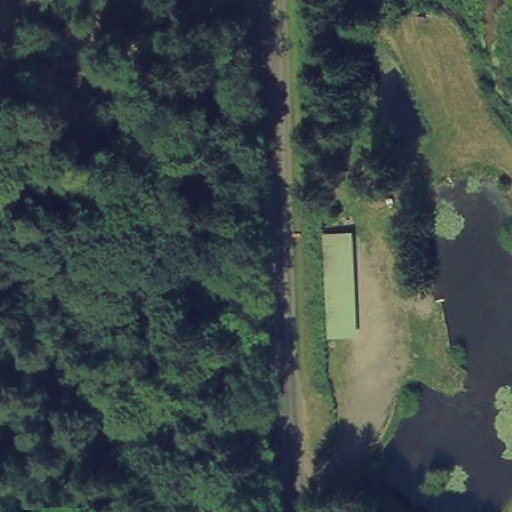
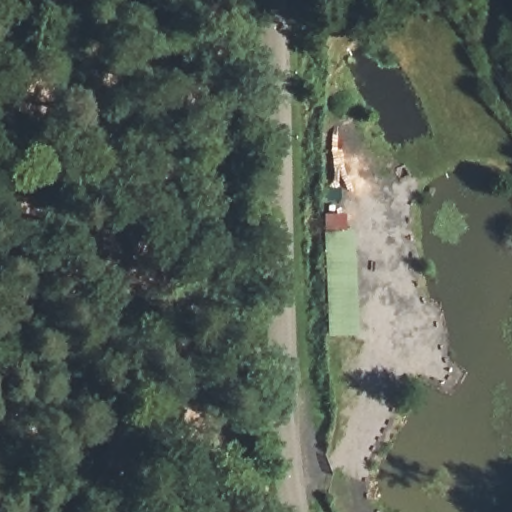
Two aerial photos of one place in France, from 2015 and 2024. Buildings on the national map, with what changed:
unchanged [(360,331),(330,333),(326,230),(358,229),(360,331)]

